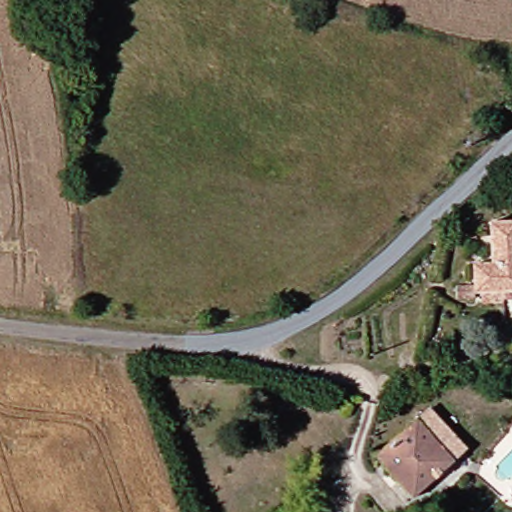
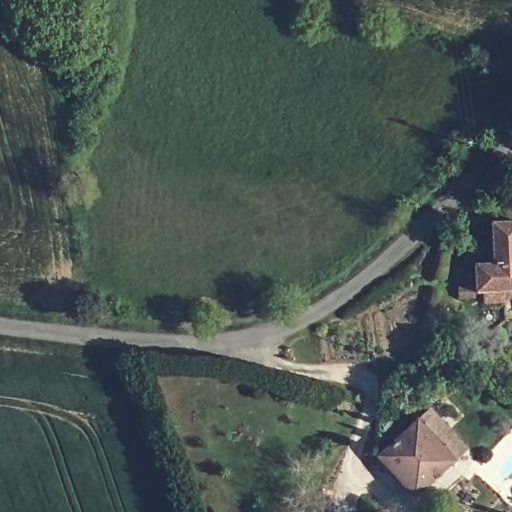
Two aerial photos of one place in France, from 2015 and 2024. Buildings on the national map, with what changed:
unchanged [(487,263),(487,221),(512,221),(512,262),(487,263)]
unchanged [(451,302),(451,283),(477,283),(477,263),(487,263),(512,262),(512,291),(477,292),(477,302),(451,302)]
unchanged [(416,414),(457,456),(416,490),(376,448),(411,418),(416,414)]

